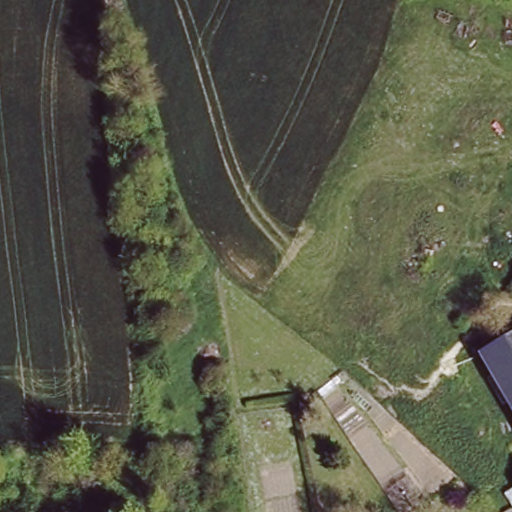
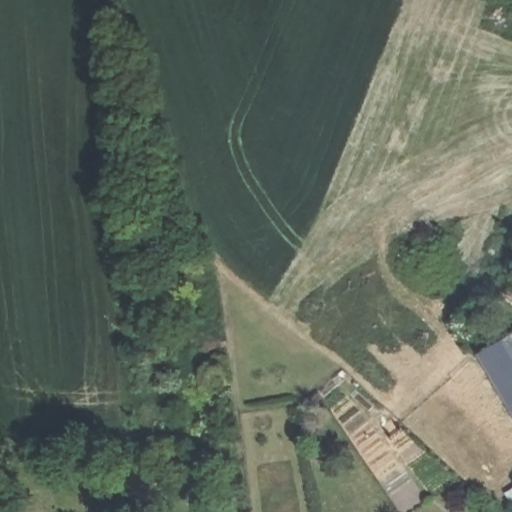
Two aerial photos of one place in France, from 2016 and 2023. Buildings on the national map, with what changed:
unchanged [(512,338),(512,405),(484,352),(512,338)]

